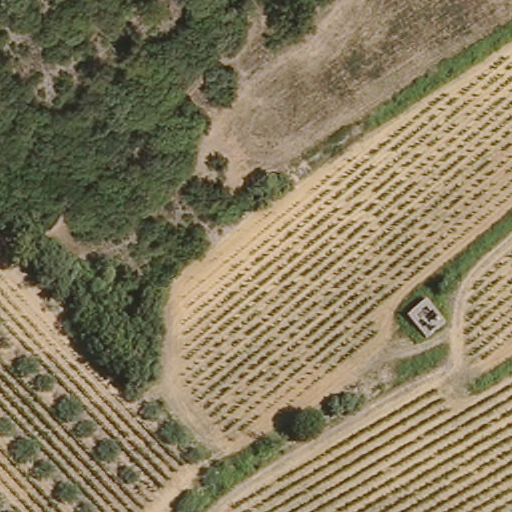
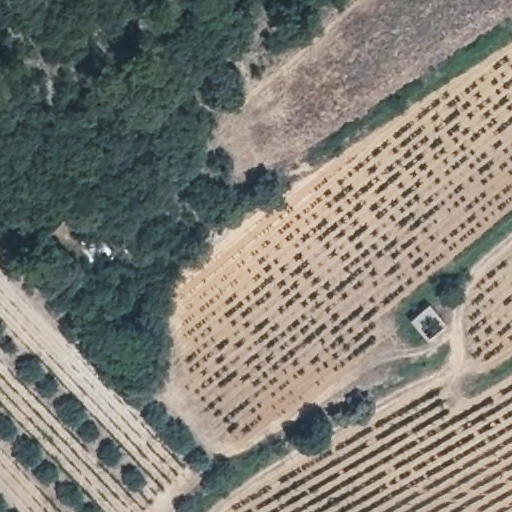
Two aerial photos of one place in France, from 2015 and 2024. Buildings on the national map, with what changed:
unchanged [(424,304),(439,323),(418,340),(401,321),(424,304)]

